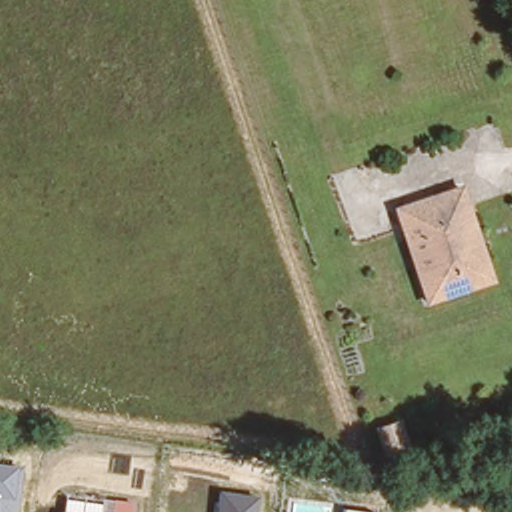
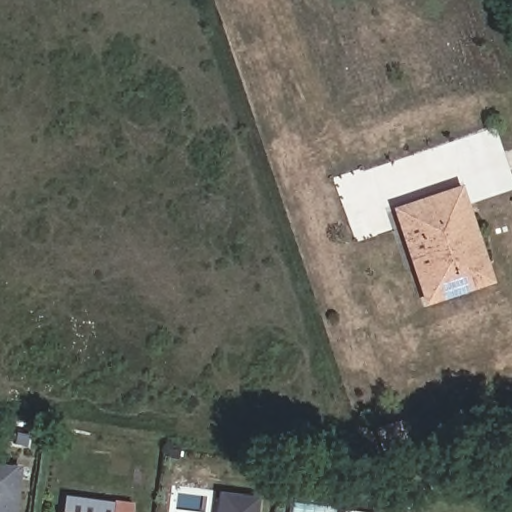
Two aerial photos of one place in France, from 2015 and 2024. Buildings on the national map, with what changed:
unchanged [(458,180),(491,272),(429,294),(395,201),(458,180)]
unchanged [(381,404),(389,430),(375,434),(371,435),(370,433),(362,409),(381,404)]
unchanged [(14,465),(22,466),(16,512),(0,512),(0,463),(14,465)]
unchanged [(220,492),(260,496),(258,512),(217,512),(220,492)]
unchanged [(102,499),(137,503),(136,512),(64,512),(66,499),(101,503),(102,499)]
unchanged [(344,509),(367,512),(344,512),(344,509)]

